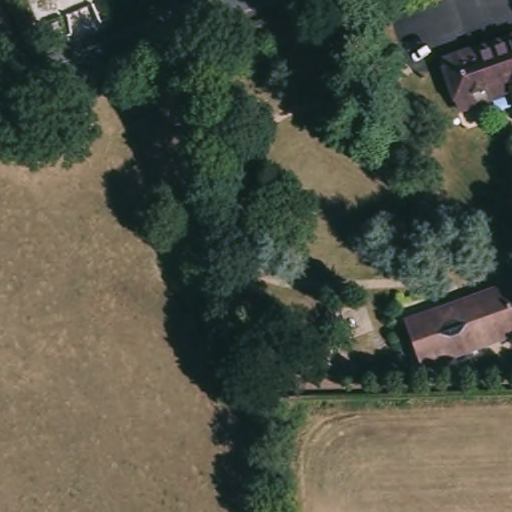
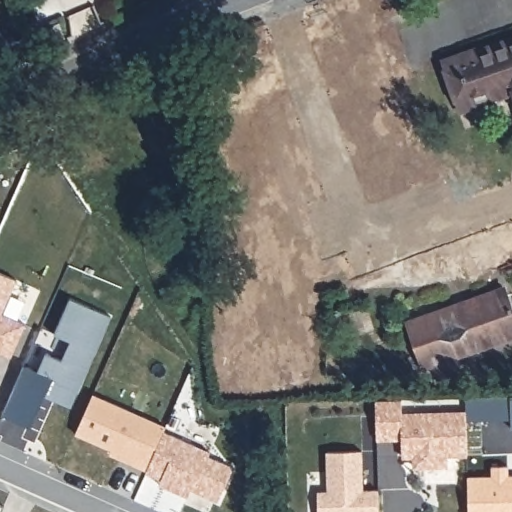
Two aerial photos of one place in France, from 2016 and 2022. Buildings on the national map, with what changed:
unchanged [(435,59),(472,45),(474,47),(512,33),(512,96),(510,91),(454,113),(448,97),(435,59)]
new [(15,279),(2,314),(22,324),(10,355),(0,352),(0,273),(15,279)]
unchanged [(512,303),(512,342),(423,372),(405,323),(506,286),(512,303)]
new [(45,394),(30,426),(2,414),(22,366),(36,372),(46,352),(62,359),(69,341),(55,333),(70,298),(109,315),(69,406),(45,394)]
new [(231,469),(216,502),(190,490),(187,498),(157,484),(159,481),(108,455),(110,451),(75,436),(92,394),(166,426),(164,431),(211,450),(209,456),(229,464),(231,469)]
new [(509,397),(512,397),(512,426),(511,426),(509,397)]
new [(446,457),(447,467),(412,469),(412,458),(401,458),(400,440),(376,440),(375,400),(401,399),(402,412),(464,410),(465,457),(446,457)]
new [(316,491),(326,491),(325,452),(361,450),(363,490),(376,490),(377,512),(317,512),(316,491)]
new [(467,477),(490,476),(490,465),(508,465),(508,476),(512,476),(512,512),(468,512),(467,477)]
new [(1,506),(0,509),(0,505),(1,506)]

